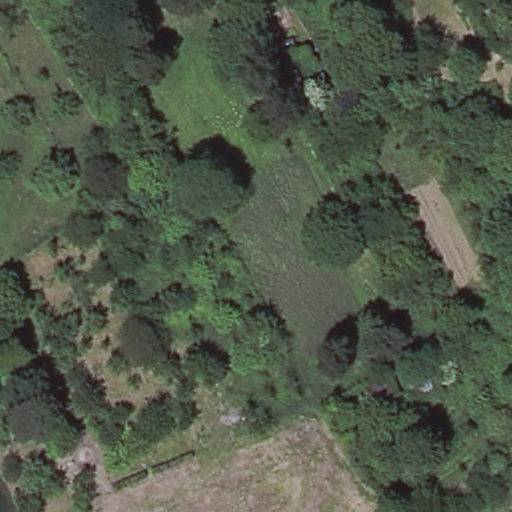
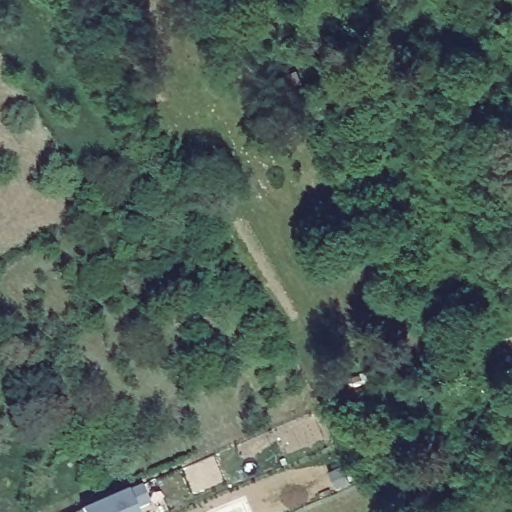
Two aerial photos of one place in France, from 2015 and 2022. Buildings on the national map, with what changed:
unchanged [(426,399),(414,373),(443,358),(455,387),(426,399)]
unchanged [(376,408),(369,391),(396,381),(405,397),(376,408)]
new [(126,493),(141,488),(149,507),(136,512),(80,512),(126,493)]

